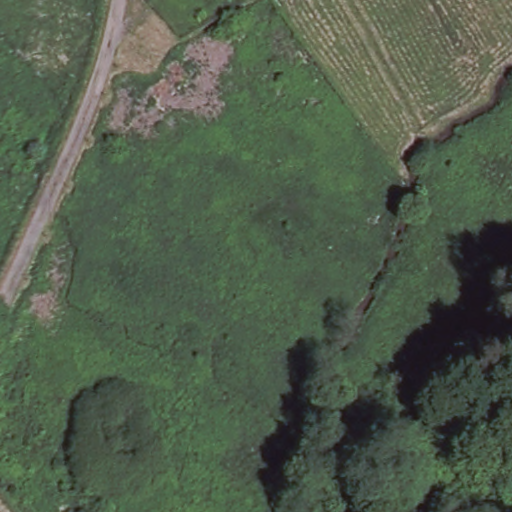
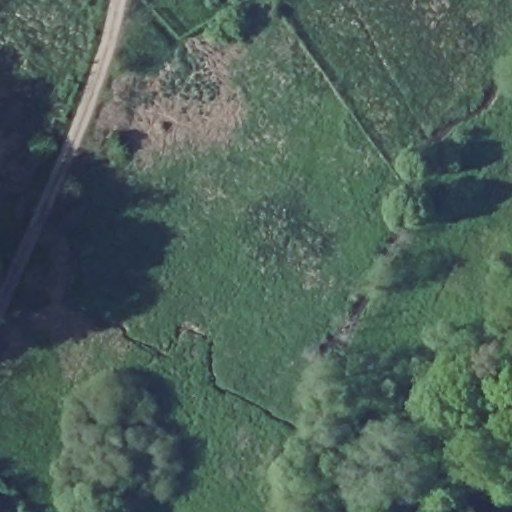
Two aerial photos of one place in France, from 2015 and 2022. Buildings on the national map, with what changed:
[]

